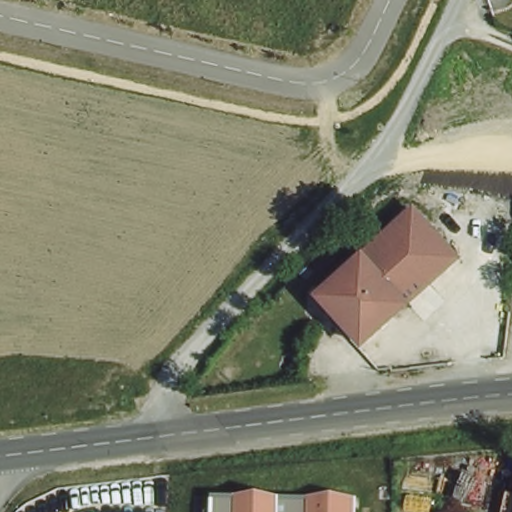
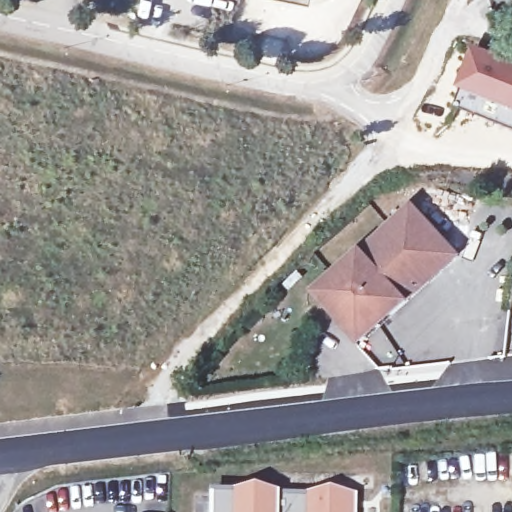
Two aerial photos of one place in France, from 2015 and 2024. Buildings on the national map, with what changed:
new [(287,0),(306,0),(306,4),(287,0)]
new [(454,108),(459,88),(475,47),(512,61),(512,132),(454,108)]
unchanged [(455,255),(360,342),(316,294),(411,207),(455,255)]
unchanged [(211,488),(356,492),(355,512),(210,512),(211,488)]

